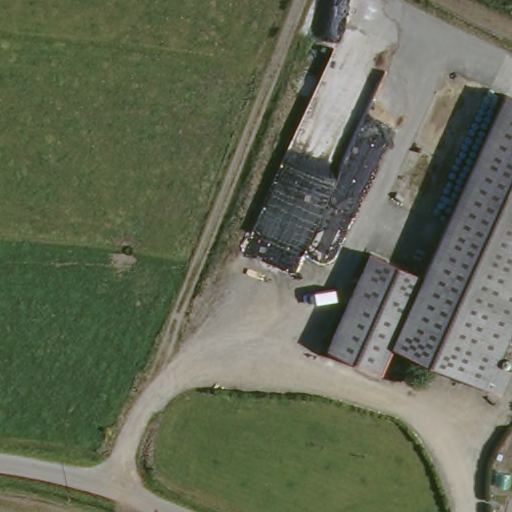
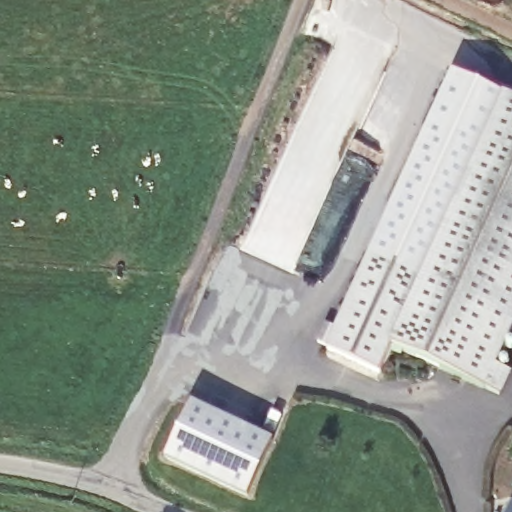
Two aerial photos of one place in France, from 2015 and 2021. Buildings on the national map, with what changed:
new [(453,69),(503,90),(420,273),(370,249),(453,69)]
unchanged [(326,347),(370,249),(420,273),(503,90),(512,95),(512,330),(498,362),(512,368),(512,374),(504,393),(392,345),(380,370),(326,347)]
new [(512,330),(512,332),(511,332),(512,330)]
new [(164,457),(189,402),(274,442),(248,497),(164,457)]
new [(512,502),(512,512),(507,512),(512,502)]

